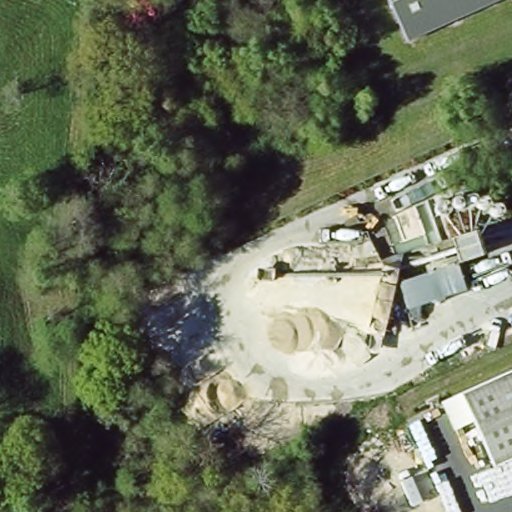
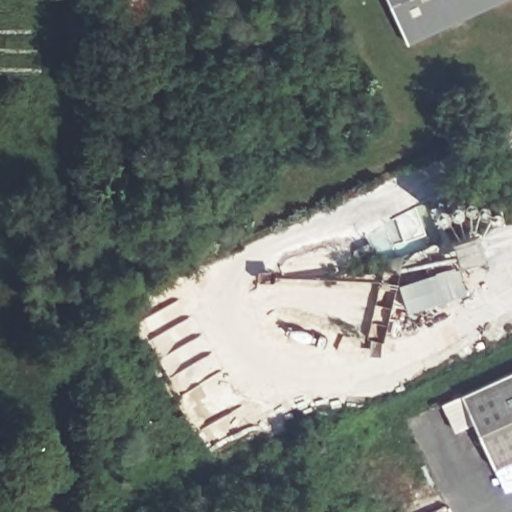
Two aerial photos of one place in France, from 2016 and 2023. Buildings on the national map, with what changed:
unchanged [(384,0),(499,0),(404,43),(384,0)]
unchanged [(457,262),(465,289),(408,310),(398,281),(457,262)]
unchanged [(492,467),(471,422),(454,430),(441,401),(461,392),(512,369),(512,458),(492,467)]

